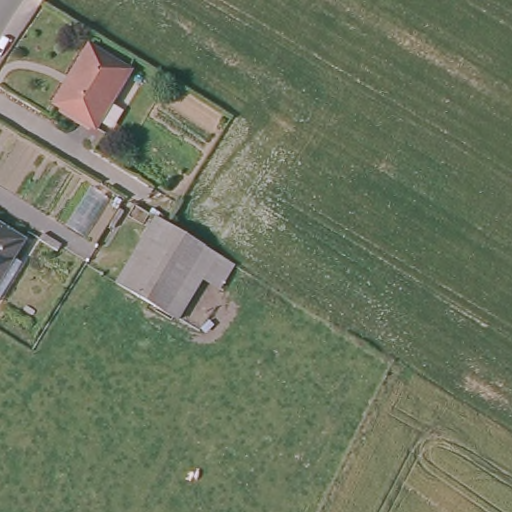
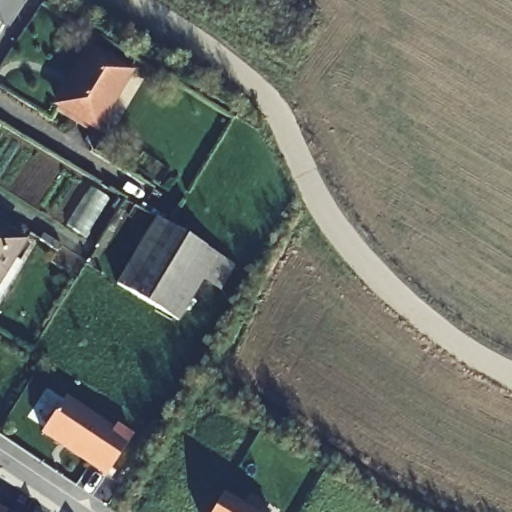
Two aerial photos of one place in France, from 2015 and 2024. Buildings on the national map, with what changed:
unchanged [(77,75),(72,71),(87,45),(127,68),(95,124),(58,106),(77,75)]
unchanged [(187,233),(225,255),(222,260),(185,323),(128,286),(167,221),(187,233)]
unchanged [(0,275),(0,229),(20,242),(0,275)]
new [(116,429),(132,439),(107,479),(42,436),(65,401),(113,433),(116,429)]
new [(249,512),(212,512),(222,495),(249,512)]

